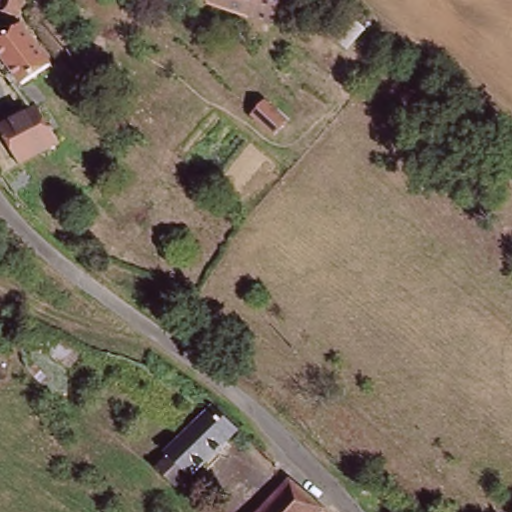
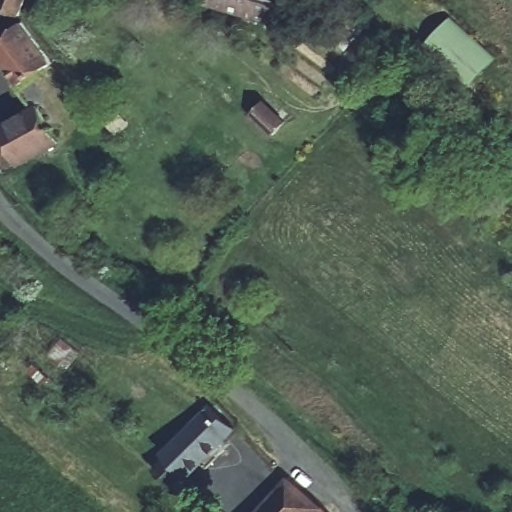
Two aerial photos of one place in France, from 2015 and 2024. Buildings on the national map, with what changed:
unchanged [(213,1),(214,0),(278,0),(272,20),(213,1)]
new [(471,87),(426,46),(450,16),(497,57),(471,87)]
unchanged [(0,55),(0,31),(18,19),(47,60),(18,81),(0,55)]
unchanged [(22,165),(1,133),(36,110),(47,126),(58,141),(22,165)]
unchanged [(165,450),(209,407),(233,427),(189,473),(165,450)]
unchanged [(285,478),(321,512),(253,512),(285,478)]

